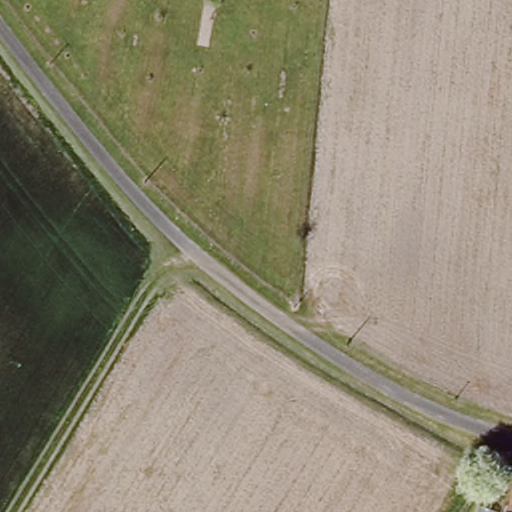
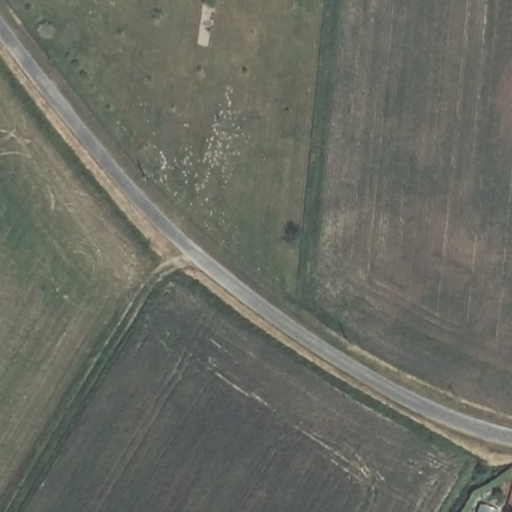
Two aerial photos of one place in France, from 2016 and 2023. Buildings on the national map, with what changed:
unchanged [(512,482),(512,512),(503,512),(512,482)]

